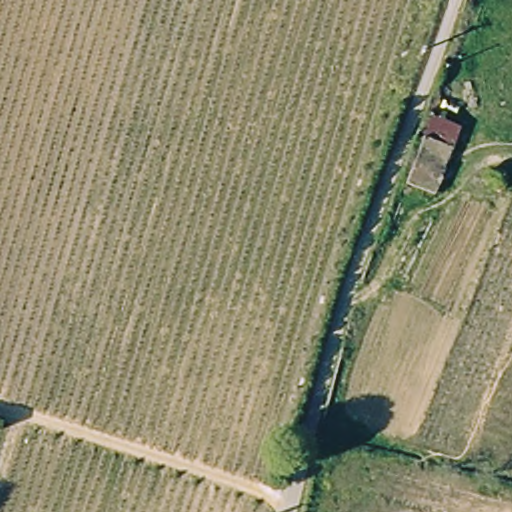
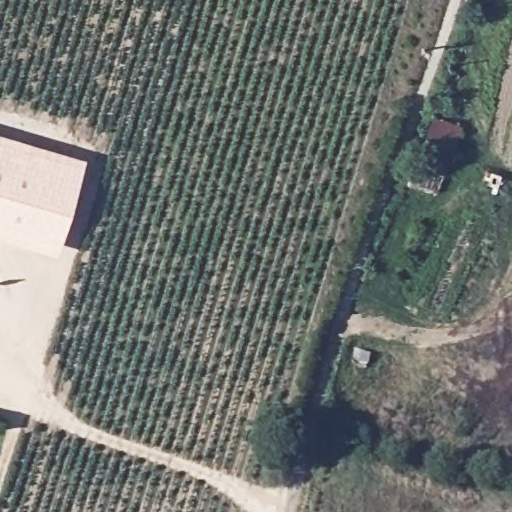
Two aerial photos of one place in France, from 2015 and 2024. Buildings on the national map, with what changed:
unchanged [(409,182),(425,134),(431,116),(461,126),(454,145),(437,193),(409,182)]
new [(86,159),(56,255),(0,239),(0,133),(86,159)]

